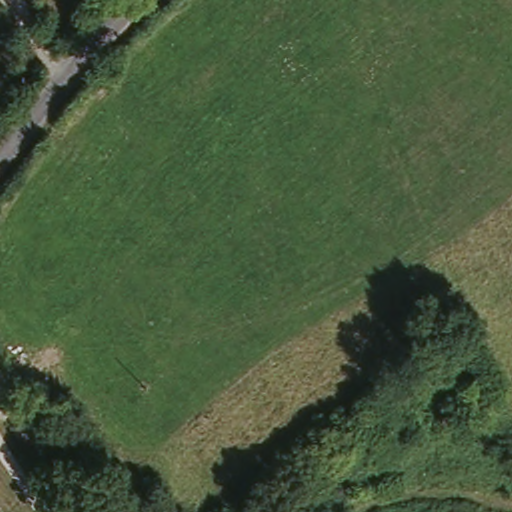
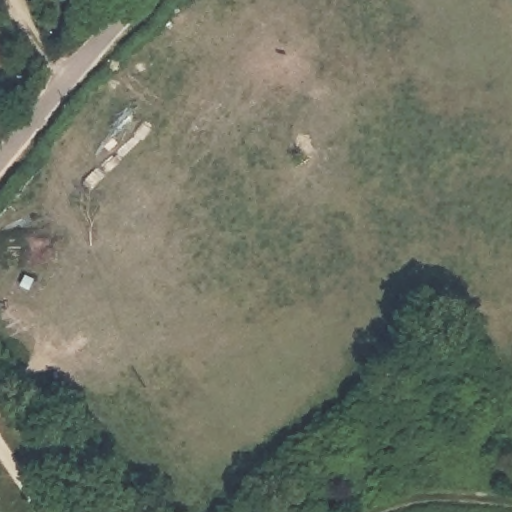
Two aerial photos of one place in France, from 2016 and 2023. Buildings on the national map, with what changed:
unchanged [(53,444),(68,458),(43,484),(29,469),(53,444)]

